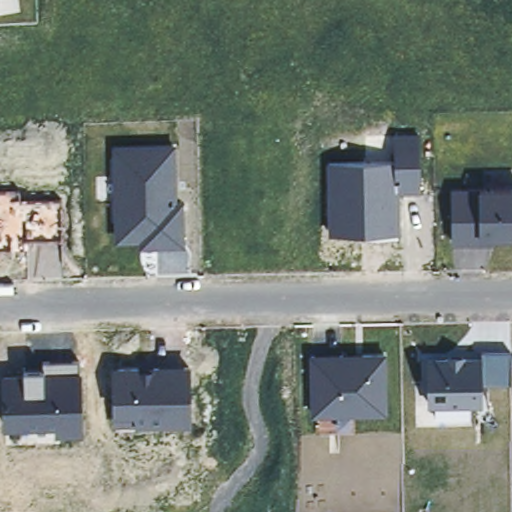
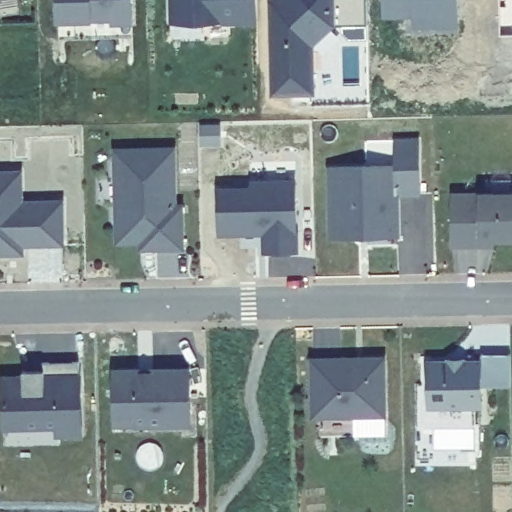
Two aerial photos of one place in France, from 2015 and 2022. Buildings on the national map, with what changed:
new [(133,25),(111,24),(110,20),(91,21),(55,22),(55,0),(132,0),(133,25)]
new [(257,20),(237,19),(236,27),(210,28),(211,39),(167,40),(167,0),(257,0),(257,20)]
new [(334,27),(334,31),(312,49),(314,97),(270,97),(269,0),(333,0),(334,27)]
new [(365,26),(334,27),(333,0),(365,0),(365,26)]
new [(457,31),(412,30),(412,20),(383,21),(382,0),(457,0),(457,31)]
new [(500,38),(499,0),(512,0),(512,38),(500,38)]
unchanged [(392,165),(392,136),(422,135),(424,198),(399,198),(401,238),(330,241),(327,163),(392,165)]
unchanged [(115,151),(177,150),(178,201),(187,198),(188,247),(142,249),(140,243),(118,241),(115,151)]
new [(217,233),(217,189),(250,188),(250,182),(295,181),(296,251),(264,251),(264,231),(249,232),(217,233)]
unchanged [(19,200),(62,199),(63,241),(10,242),(11,253),(0,254),(0,191),(20,190),(19,200)]
unchanged [(455,192),(512,191),(512,234),(496,235),(496,243),(455,244),(455,192)]
unchanged [(482,387),(482,358),(482,352),(512,352),(512,387),(482,387)]
unchanged [(386,355),(387,414),(310,416),(309,356),(386,355)]
unchanged [(427,360),(482,358),(482,405),(427,406),(427,360)]
unchanged [(5,376),(24,376),(25,370),(42,369),(42,374),(52,374),(52,365),(82,363),(86,438),(56,438),(55,426),(5,428),(5,376)]
unchanged [(115,371),(190,368),(192,424),(118,428),(115,371)]

